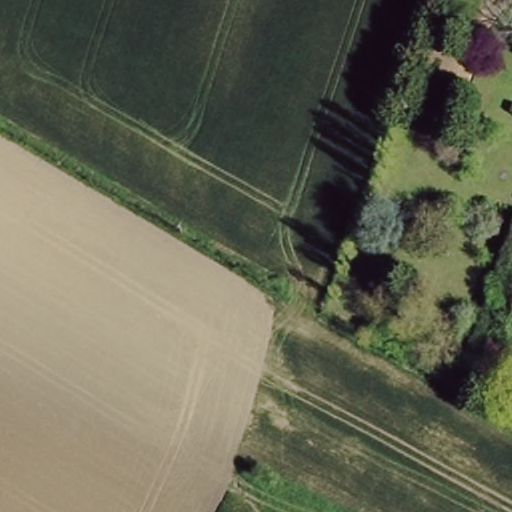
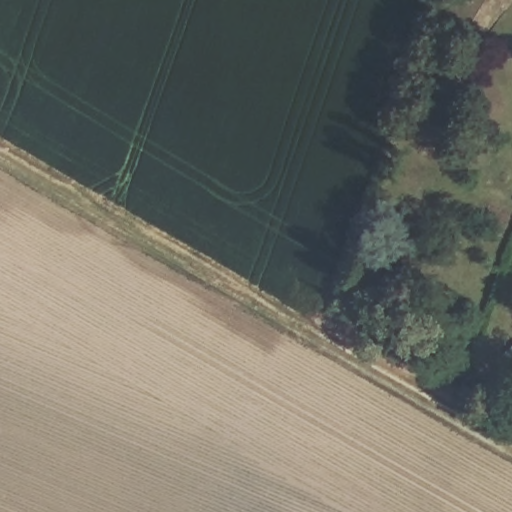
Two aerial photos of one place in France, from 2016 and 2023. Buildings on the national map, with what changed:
unchanged [(458,104),(416,92),(429,49),(471,61),(458,104)]

